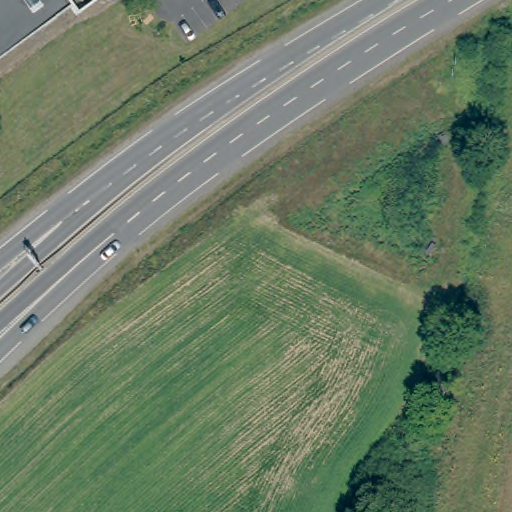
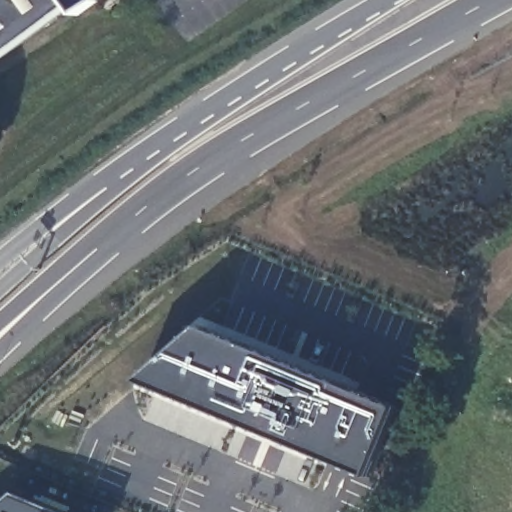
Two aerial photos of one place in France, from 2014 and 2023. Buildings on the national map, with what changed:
unchanged [(77,16),(70,8),(0,60),(0,0),(99,0),(77,16)]
new [(373,476),(143,381),(205,327),(401,407),(373,476)]
new [(62,512),(0,512),(0,509),(17,493),(62,512)]

